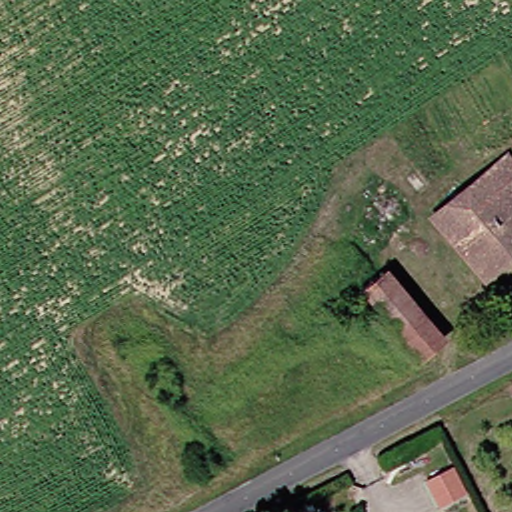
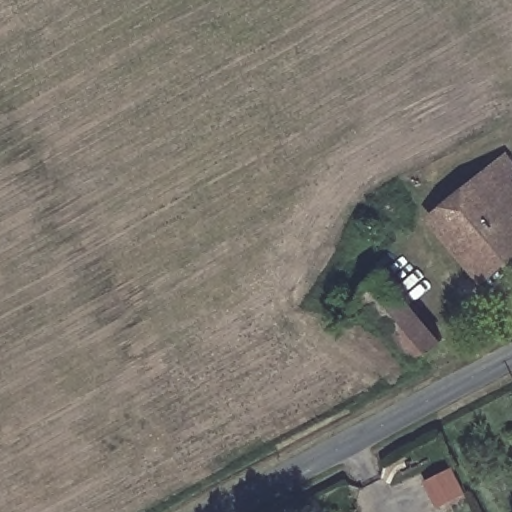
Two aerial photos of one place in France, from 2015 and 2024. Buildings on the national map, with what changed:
unchanged [(512,248),(476,278),(421,212),(487,154),(512,184),(512,248)]
unchanged [(407,359),(352,294),(377,273),(432,337),(407,359)]
unchanged [(436,512),(422,487),(447,472),(462,497),(436,512)]

